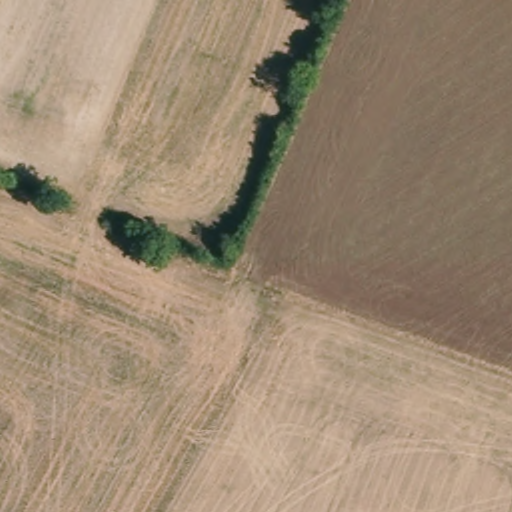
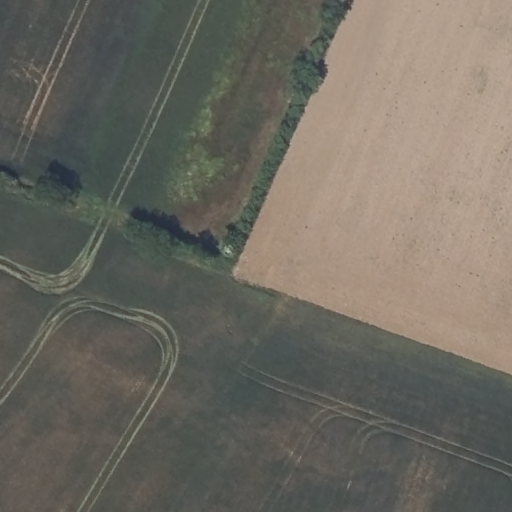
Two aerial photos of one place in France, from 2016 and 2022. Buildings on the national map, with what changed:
[]

